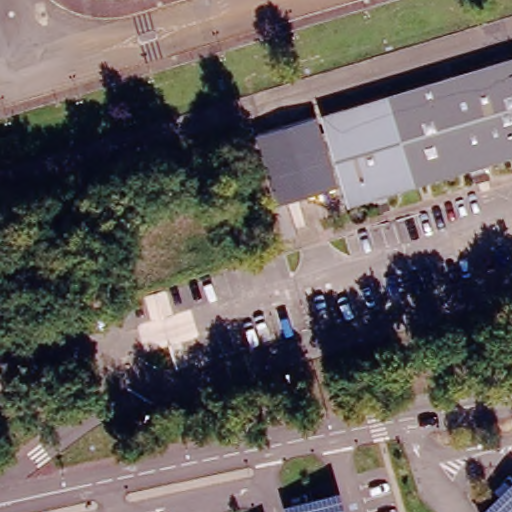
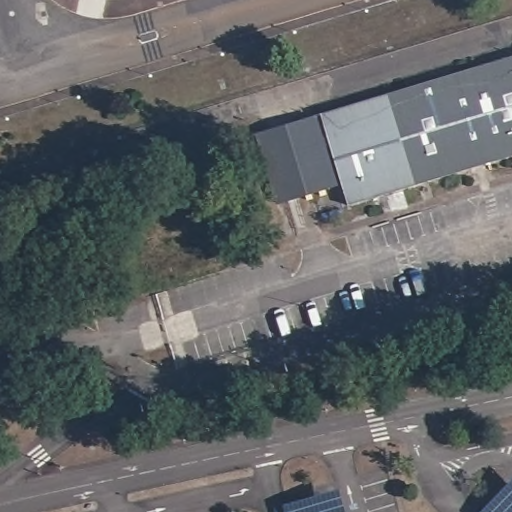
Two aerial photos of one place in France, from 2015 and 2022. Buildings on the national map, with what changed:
unchanged [(372,199),(347,207),(319,115),(512,57),(512,157),(487,165),(489,178),(474,182),(471,169),(385,196),(389,209),(376,213),(372,199)]
unchanged [(256,134),(316,116),(337,185),(278,204),(256,134)]
unchanged [(512,512),(480,512),(512,480),(512,512)]
unchanged [(340,489),(346,512),(286,512),(284,504),(340,489)]

